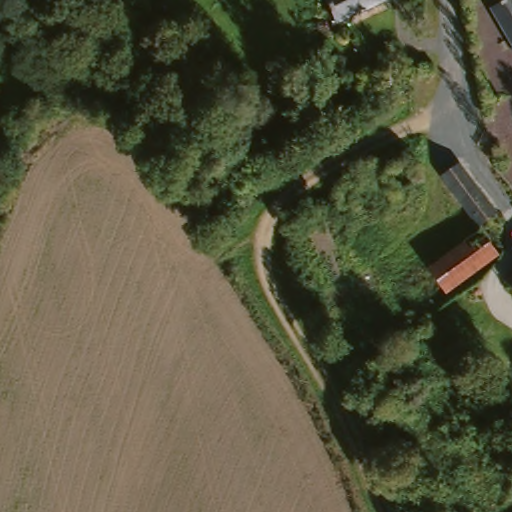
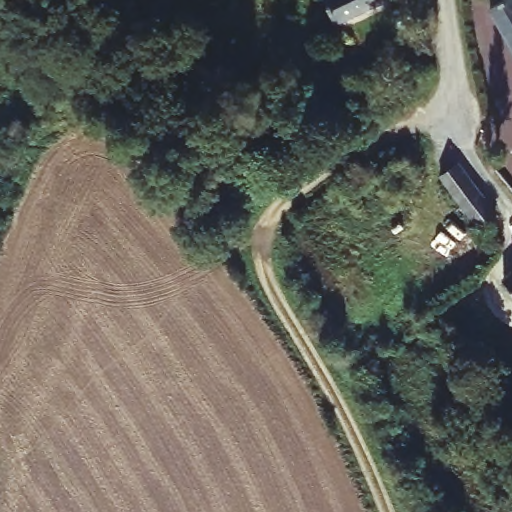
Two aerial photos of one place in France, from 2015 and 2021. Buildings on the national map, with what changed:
unchanged [(388,1),(336,25),(324,0),(388,0),(388,1)]
unchanged [(508,1),(512,8),(512,61),(484,15),(508,1)]
unchanged [(450,167),(483,220),(468,233),(431,179),(450,167)]
unchanged [(422,275),(471,237),(485,259),(451,285),(437,296),(422,275)]
unchanged [(512,272),(512,309),(493,291),(512,272)]

